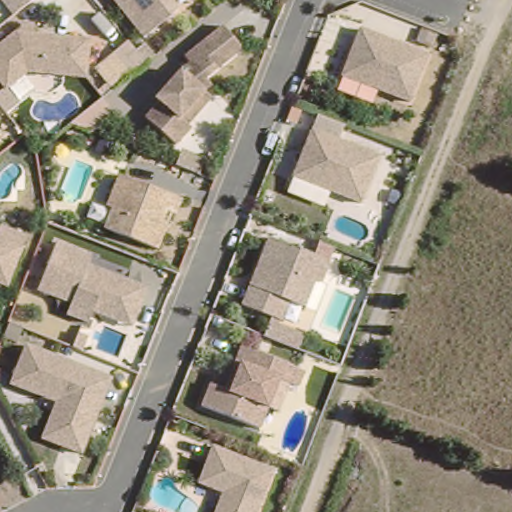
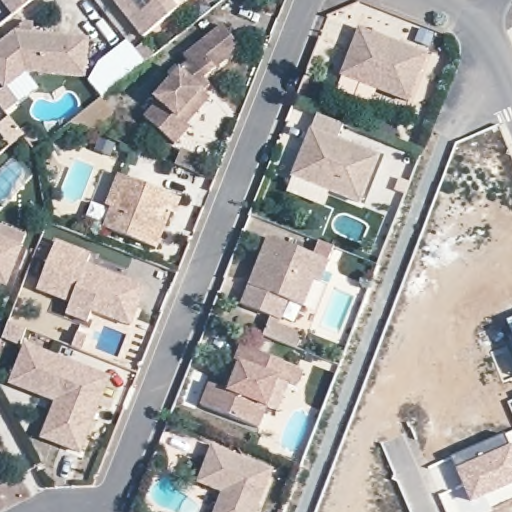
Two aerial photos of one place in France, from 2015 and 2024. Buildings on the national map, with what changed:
unchanged [(29,2),(13,16),(1,0),(27,0),(29,2)]
unchanged [(172,6),(138,33),(112,0),(168,0),(172,6)]
unchanged [(185,124),(170,141),(140,114),(154,97),(150,94),(175,66),(183,60),(178,53),(217,22),(234,44),(232,47),(198,74),(203,81),(197,87),(205,94),(181,121),(185,124)]
unchanged [(335,72),(344,50),(348,40),(354,25),(422,52),(403,98),(335,72)]
unchanged [(22,67),(0,84),(0,36),(6,32),(10,28),(26,30),(83,36),(80,74),(22,67)]
unchanged [(287,177),(295,156),(300,147),(305,131),(373,157),(355,204),(287,177)]
unchanged [(151,245),(98,225),(107,205),(101,202),(113,171),(175,195),(168,210),(162,207),(157,220),(160,221),(157,227),(151,245)]
unchanged [(0,281),(0,222),(21,230),(16,243),(0,282),(0,281)]
unchanged [(263,234),(322,258),(314,279),(308,277),(297,303),(282,297),(275,317),(237,301),(245,281),(249,270),(263,234)]
unchanged [(107,315),(87,306),(82,318),(60,310),(65,298),(32,285),(50,237),(85,251),(81,260),(87,262),(100,267),(140,283),(132,303),(125,322),(107,315)]
new [(512,333),(507,321),(512,318),(512,333)]
new [(269,321),(302,335),(296,348),(263,336),(269,321)]
unchanged [(62,422),(50,397),(5,380),(18,343),(2,337),(7,323),(24,330),(20,342),(104,374),(82,430),(62,422)]
unchanged [(273,375),(253,425),(196,402),(205,380),(218,386),(229,358),(235,342),(297,367),(292,382),(273,375)]
unchanged [(75,449),(37,434),(50,397),(62,422),(82,430),(75,449)]
new [(512,445),(512,486),(470,503),(455,470),(457,468),(452,457),(505,434),(510,446),(512,445)]
unchanged [(192,478),(207,441),(268,466),(250,512),(207,512),(217,487),(192,478)]

